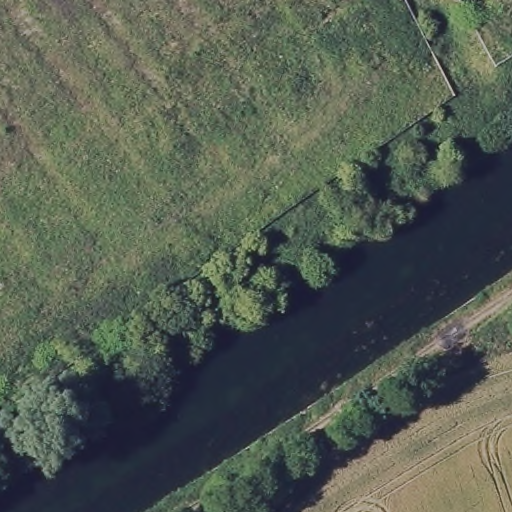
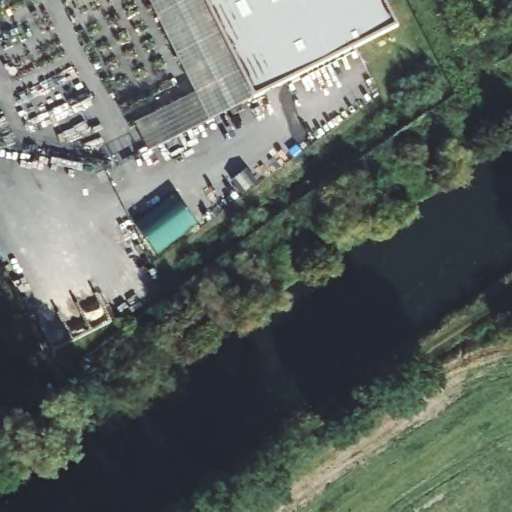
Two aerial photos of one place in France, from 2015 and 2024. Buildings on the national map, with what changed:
new [(78,10),(73,0),(98,0),(78,10)]
new [(134,123),(195,92),(148,0),(208,0),(258,97),(148,150),(134,123)]
new [(403,27),(260,98),(211,0),(390,0),(403,27)]
new [(0,85),(0,79),(3,83),(0,85)]
new [(199,224),(159,256),(136,226),(175,197),(199,224)]

